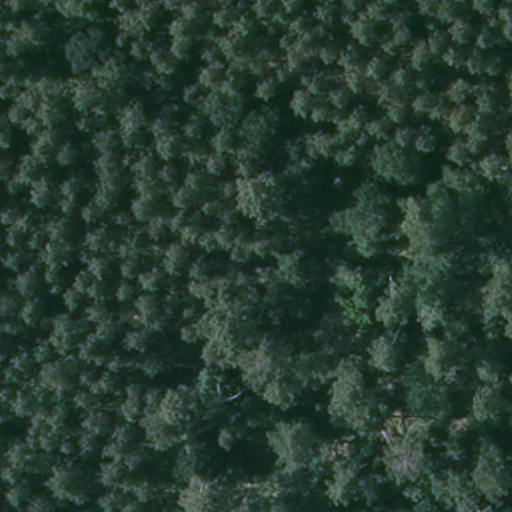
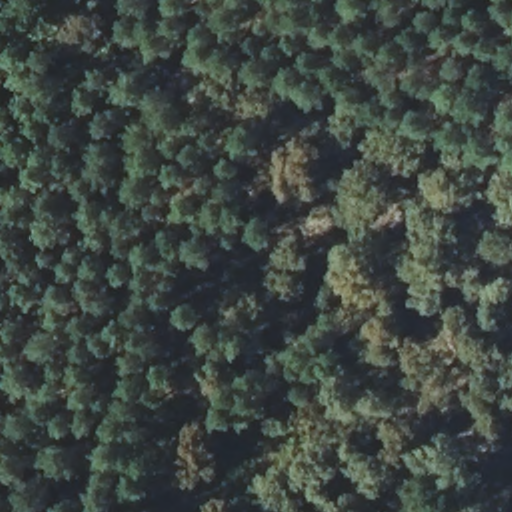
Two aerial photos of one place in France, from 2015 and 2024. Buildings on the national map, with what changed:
[]

